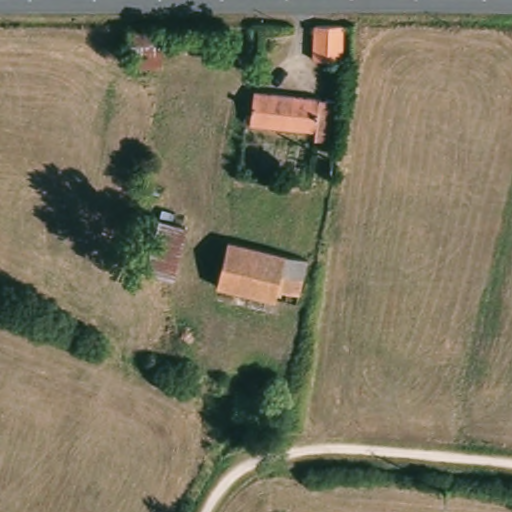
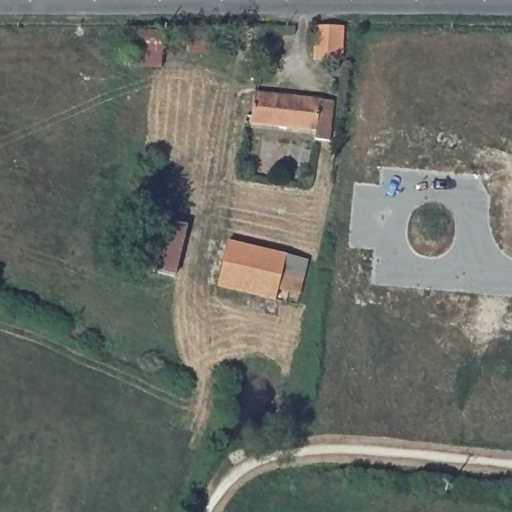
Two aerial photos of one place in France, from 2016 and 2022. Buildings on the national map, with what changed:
unchanged [(126,69),(128,40),(129,28),(214,28),(213,58),(185,58),(184,49),(160,50),(159,71),(126,69)]
unchanged [(338,35),(334,65),(305,62),(308,33),(338,35)]
unchanged [(248,112),(250,91),(340,103),(336,143),(323,142),(324,134),(258,127),(261,113),(248,112)]
unchanged [(188,223),(180,275),(150,271),(159,219),(188,223)]
unchanged [(307,259),(302,297),(284,293),(282,303),(224,293),(230,248),(307,259)]

